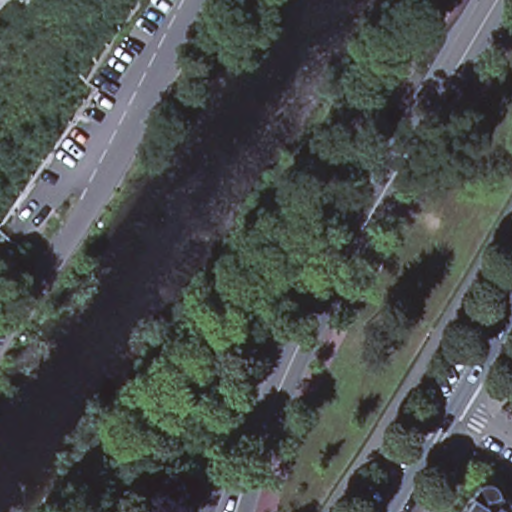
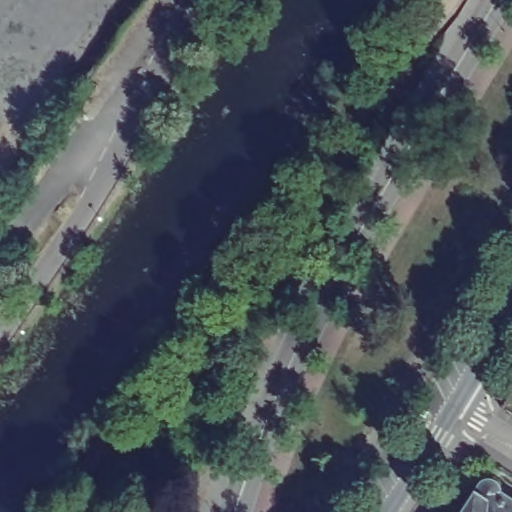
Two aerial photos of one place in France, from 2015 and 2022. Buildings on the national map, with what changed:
unchanged [(476,484),(480,481),(485,479),(490,479),(495,481),(499,484),(500,489),(500,493),(512,500),(512,512),(458,512),(476,484)]

